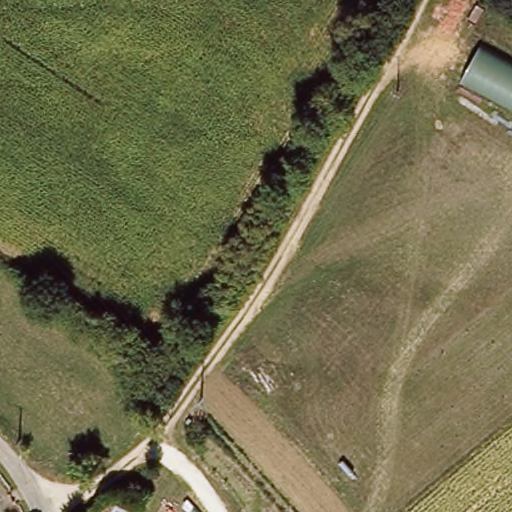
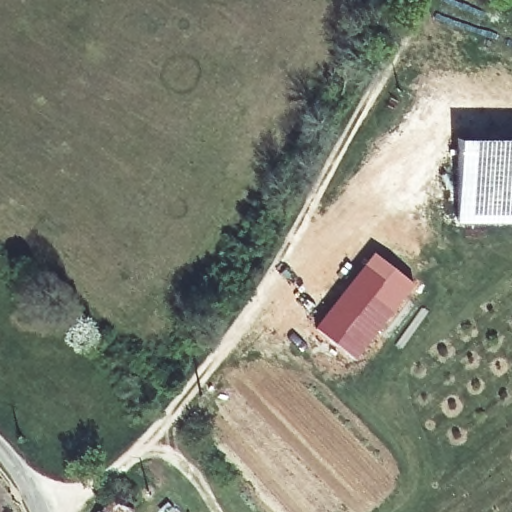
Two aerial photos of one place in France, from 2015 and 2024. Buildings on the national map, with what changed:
new [(499,53),(512,60),(512,106),(479,89),(499,53)]
new [(512,135),(512,220),(455,222),(454,135),(512,135)]
new [(416,284),(357,361),(315,328),(374,253),(416,284)]
unchanged [(135,512),(99,512),(109,496),(135,512)]

